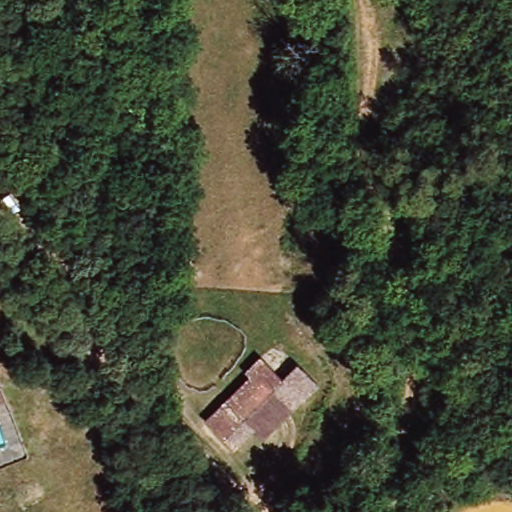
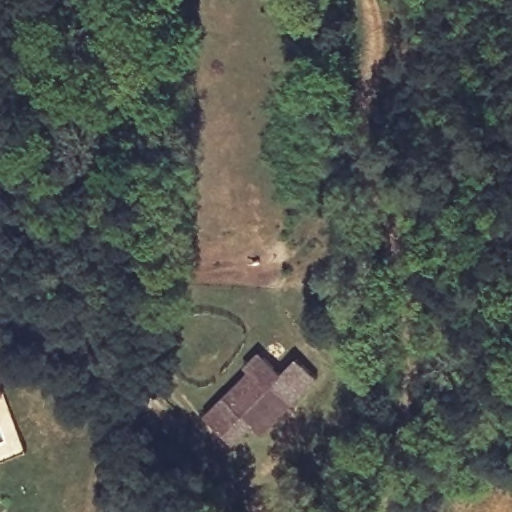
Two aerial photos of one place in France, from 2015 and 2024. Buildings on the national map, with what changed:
unchanged [(247,417),(226,440),(197,411),(257,353),(274,369),(292,352),(310,372),(283,401),(277,407),(257,427),(247,417)]

